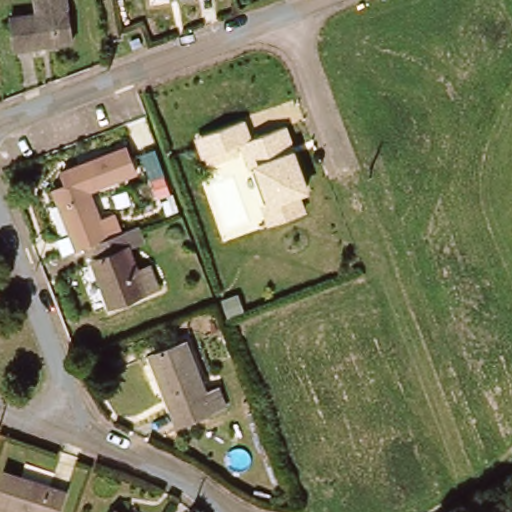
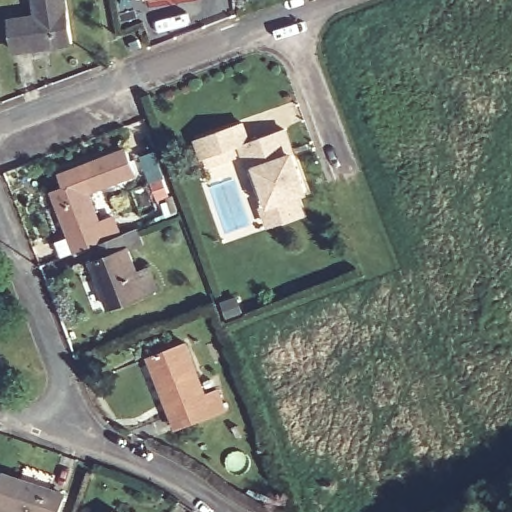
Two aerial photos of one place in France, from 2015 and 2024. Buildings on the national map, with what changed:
unchanged [(63,0),(70,37),(13,48),(8,21),(33,17),(31,0),(63,0)]
unchanged [(156,0),(165,0),(157,3),(156,0)]
unchanged [(246,140),(241,142),(243,149),(229,154),(212,160),(204,137),(203,132),(212,130),(247,117),(253,137),(283,126),(289,124),(298,150),(301,162),(309,187),(299,191),(306,211),(274,222),(267,201),(259,177),(255,166),(246,140)]
unchanged [(84,177),(63,185),(59,174),(126,148),(138,177),(91,195),(84,177)]
unchanged [(103,242),(76,251),(54,189),(84,177),(108,240),(103,242)]
unchanged [(139,277),(154,272),(161,294),(113,308),(98,256),(106,252),(103,242),(108,240),(126,234),(139,277)]
unchanged [(228,331),(214,336),(208,317),(221,313),(228,331)]
unchanged [(217,414),(168,430),(146,360),(178,349),(193,395),(209,390),(217,414)]
unchanged [(0,508),(0,488),(3,478),(62,497),(57,512),(12,512),(0,508)]
unchanged [(111,510),(115,512),(110,512),(111,510)]

